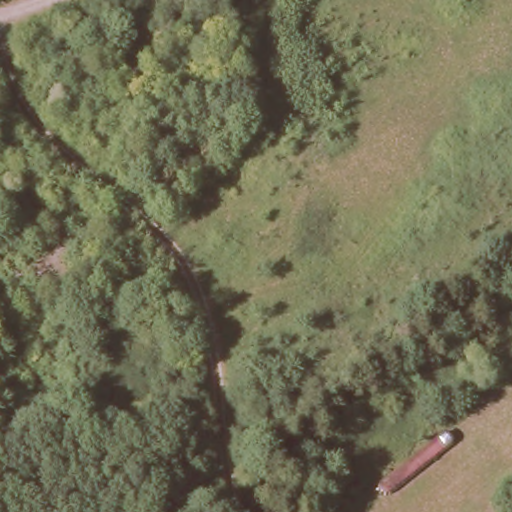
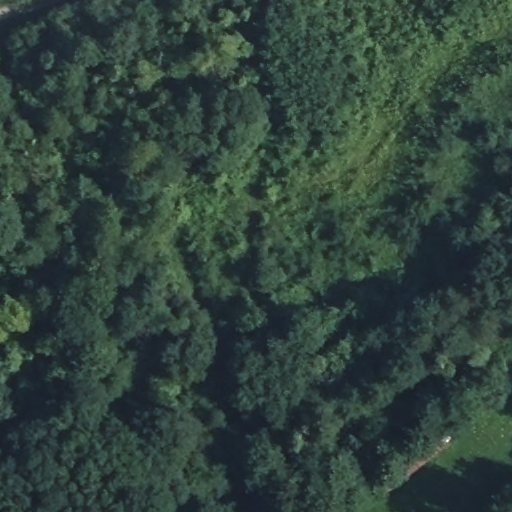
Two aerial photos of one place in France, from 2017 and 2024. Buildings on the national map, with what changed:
unchanged [(44,311),(40,302),(0,317),(0,261),(82,228),(107,283),(44,311)]
unchanged [(445,431),(455,444),(387,497),(379,485),(445,431)]

